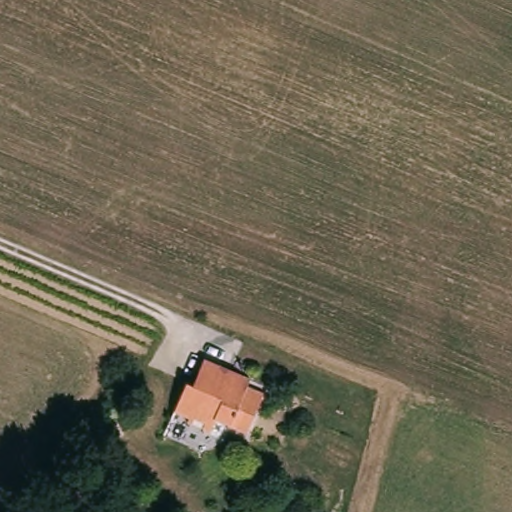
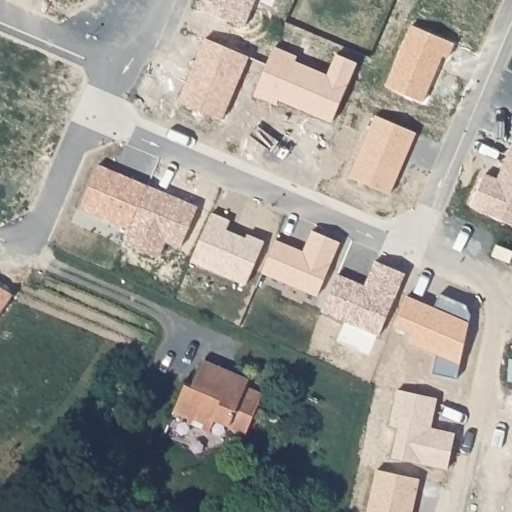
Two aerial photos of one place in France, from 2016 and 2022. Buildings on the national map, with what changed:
new [(255,0),(244,26),(200,7),(203,0),(255,0)]
new [(413,24),(457,43),(452,56),(445,53),(424,102),(387,86),(413,24)]
new [(206,37),(250,56),(222,120),(179,102),(206,37)]
new [(276,46),(298,56),(296,61),(330,74),(338,54),(358,62),(334,121),(280,99),(278,104),(256,94),(276,46)]
new [(375,114),(414,130),(388,191),(350,174),(375,114)]
new [(487,173),(499,178),(512,148),(512,224),(473,207),(487,173)]
new [(100,163),(150,184),(130,228),(81,207),(100,163)]
new [(130,228),(150,184),(200,205),(182,247),(167,240),(160,256),(125,241),(130,228)]
new [(214,211),(233,219),(229,229),(248,238),(250,233),(267,240),(248,284),(193,261),(214,211)]
new [(278,238),(305,250),(314,230),(341,241),(318,295),(264,272),(278,238)]
new [(498,244),(512,250),(512,263),(495,255),(498,244)]
new [(340,273),(366,284),(376,261),(405,273),(380,334),(324,310),(340,273)]
new [(0,316),(0,287),(14,296),(0,316)]
new [(409,294),(436,306),(441,293),(468,304),(473,314),(460,378),(433,373),(438,353),(410,342),(414,333),(396,325),(409,294)]
unchanged [(255,378),(250,391),(266,399),(251,433),(220,420),(215,432),(192,422),(194,418),(179,412),(187,392),(191,384),(198,387),(210,360),(255,378)]
new [(398,390),(439,398),(433,426),(458,432),(450,470),(392,457),(399,426),(390,424),(398,390)]
new [(377,469),(421,479),(414,512),(368,512),(377,469)]

